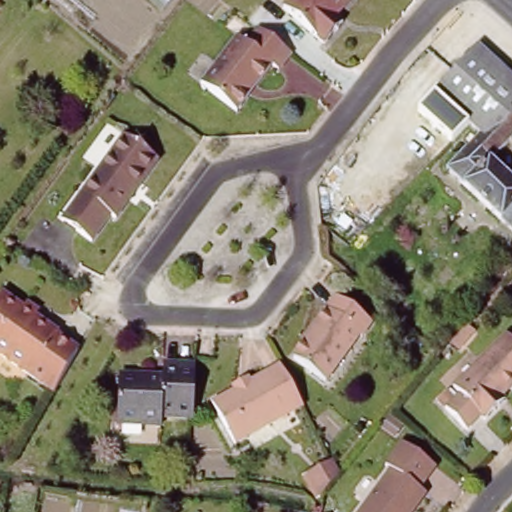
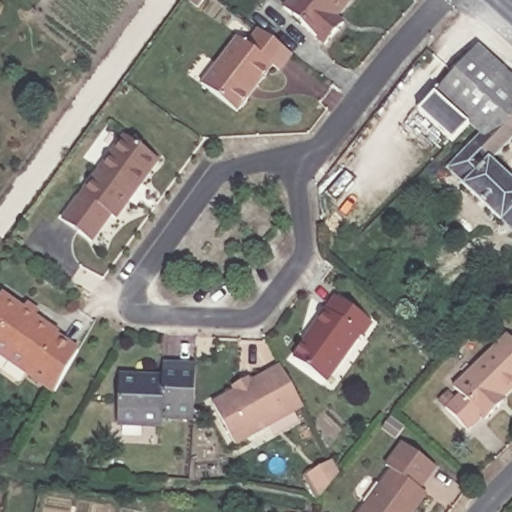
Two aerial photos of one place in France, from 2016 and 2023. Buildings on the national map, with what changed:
unchanged [(142,0),(175,0),(162,16),(142,0)]
unchanged [(335,14),(317,34),(278,0),(333,0),(327,6),(335,14)]
unchanged [(270,70),(265,66),(230,111),(193,82),(230,37),(238,44),(250,29),(283,54),(270,70)]
unchanged [(477,133),(465,122),(433,93),(474,46),(512,80),(512,98),(477,133)]
unchanged [(465,122),(449,142),(416,116),(433,93),(465,122)]
unchanged [(487,161),(512,184),(512,254),(489,231),(498,220),(444,168),(477,133),(512,98),(512,134),(487,161)]
unchanged [(151,160),(107,217),(102,214),(83,239),(55,219),(118,136),(151,160)]
unchanged [(0,355),(0,298),(25,312),(56,331),(55,333),(79,347),(56,387),(8,360),(0,355)]
unchanged [(320,382),(288,353),(310,328),(307,327),(332,301),(366,331),(355,343),(329,372),(320,382)]
unchanged [(501,415),(485,429),(482,426),(470,438),(449,417),(461,404),(453,395),(508,344),(512,348),(512,395),(501,406),(505,410),(501,415)]
unchanged [(187,418),(156,417),(156,424),(113,422),(115,375),(156,377),(157,363),(190,366),(187,418)]
unchanged [(299,402),(274,416),(273,422),(264,427),(257,426),(243,433),(242,438),(231,444),(208,402),(278,363),(299,402)]
unchanged [(402,440),(435,464),(419,485),(426,491),(409,512),(358,512),(390,466),(385,461),(402,440)]
unchanged [(335,467),(312,492),(300,468),(327,453),(335,467)]

